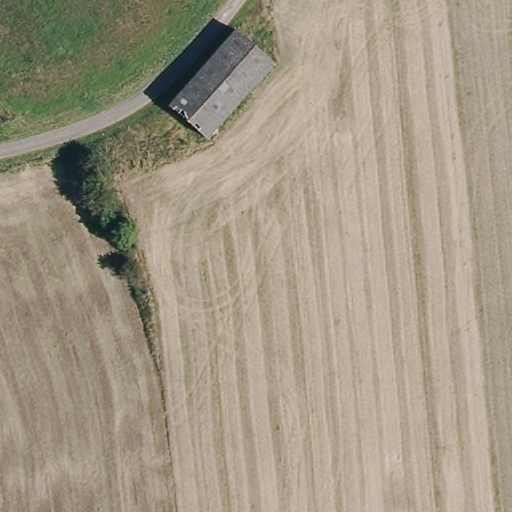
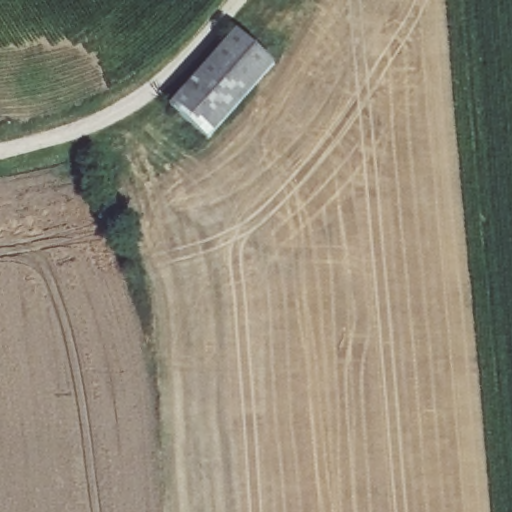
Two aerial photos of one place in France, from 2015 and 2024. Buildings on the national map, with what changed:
unchanged [(236,30),(276,66),(208,147),(168,109),(236,30)]

